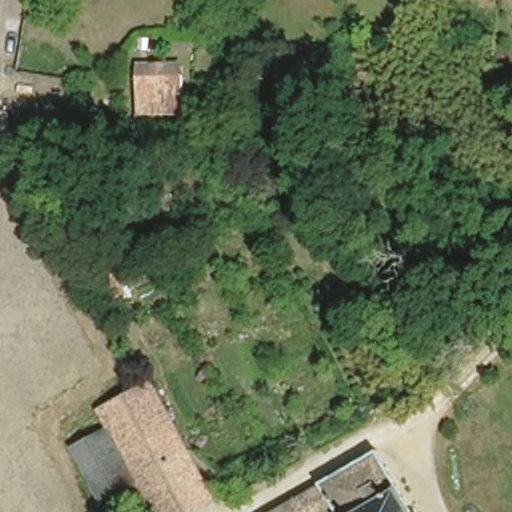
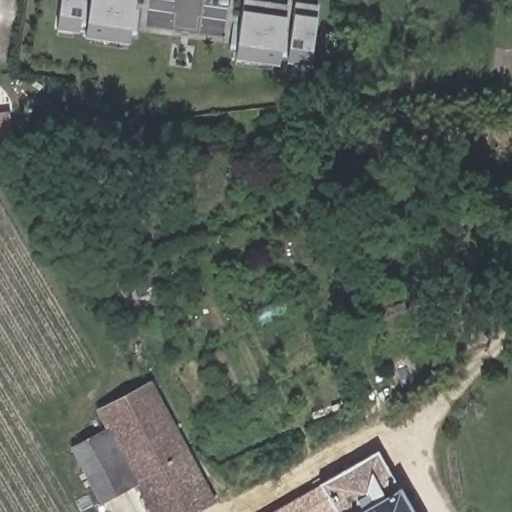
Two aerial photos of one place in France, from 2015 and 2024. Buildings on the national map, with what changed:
new [(56,28),(60,0),(83,0),(79,31),(56,28)]
new [(85,37),(91,0),(136,0),(129,44),(85,37)]
new [(236,59),(243,0),(257,0),(288,5),(279,65),(236,59)]
new [(286,61),(295,1),(318,5),(309,65),(286,61)]
demolished [(153,110),(153,116),(138,119),(137,76),(180,75),(181,110),(153,110)]
unchanged [(239,105),(238,109),(222,110),(227,86),(253,92),(250,107),(239,105)]
unchanged [(335,105),(337,89),(354,91),(352,107),(335,105)]
unchanged [(196,112),(189,111),(189,105),(196,105),(196,112)]
unchanged [(0,116),(4,115),(5,136),(0,137),(0,116)]
unchanged [(14,125),(41,122),(43,134),(15,137),(14,125)]
unchanged [(210,501),(197,508),(189,512),(151,512),(136,483),(107,430),(99,412),(149,385),(184,451),(210,501)]
unchanged [(136,483),(99,503),(70,449),(80,443),(107,430),(136,483)]
unchanged [(336,512),(335,511),(334,512),(272,512),(375,452),(410,512),(336,512)]

